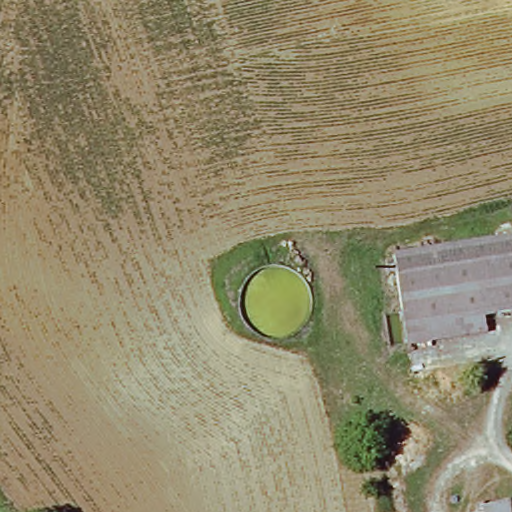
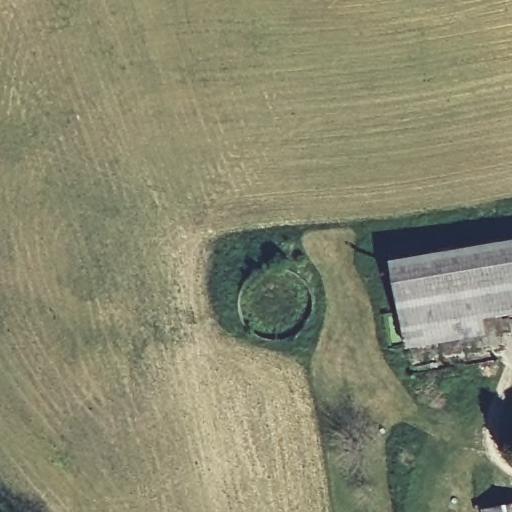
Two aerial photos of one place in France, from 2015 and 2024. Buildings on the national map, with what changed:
unchanged [(383,265),(512,242),(512,274),(446,299),(395,321),(383,265)]
unchanged [(477,320),(481,339),(464,343),(446,299),(512,274),(512,313),(477,320)]
unchanged [(402,356),(395,321),(446,299),(464,343),(402,356)]
unchanged [(509,512),(512,511),(512,512),(509,512)]

